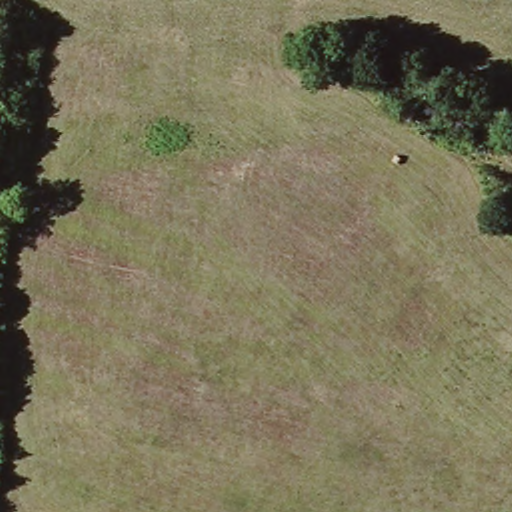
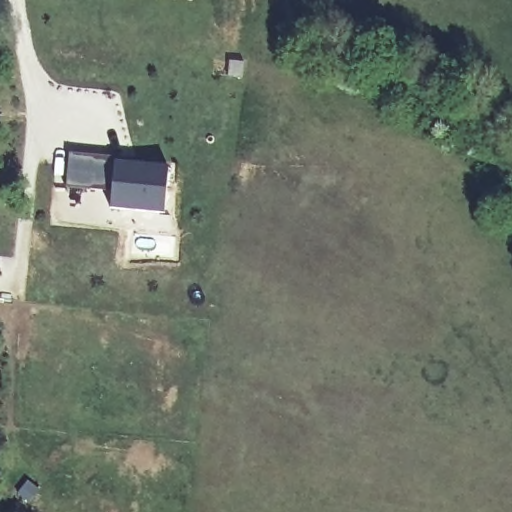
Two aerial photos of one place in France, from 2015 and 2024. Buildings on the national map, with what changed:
new [(178,162),(173,219),(104,214),(105,190),(68,187),(70,150),(178,162)]

